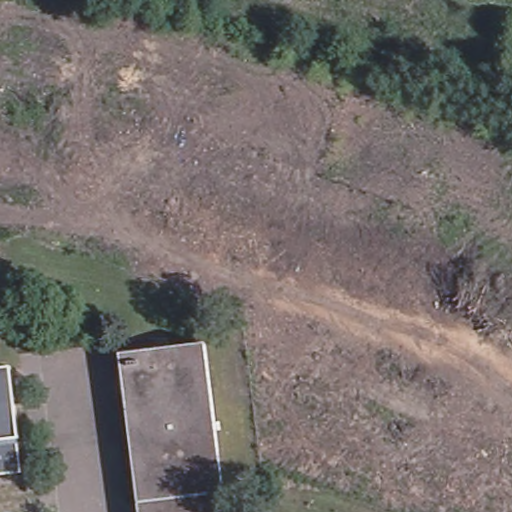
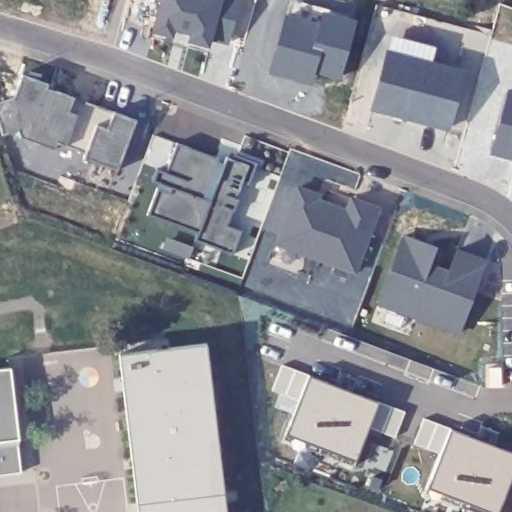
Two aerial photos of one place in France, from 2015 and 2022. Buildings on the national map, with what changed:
new [(219,0),(243,0),(232,43),(211,37),(207,46),(192,41),(195,34),(173,26),(170,35),(154,30),(162,0),(216,0),(219,1),(219,0)]
new [(320,26),(324,15),(355,24),(340,81),(315,74),(314,84),(271,72),(287,18),(320,26)]
new [(395,36),(437,48),(432,70),(465,79),(450,136),(404,123),(405,118),(399,116),(397,121),(374,115),(390,59),(395,36)]
new [(22,76),(49,85),(47,89),(62,94),(50,119),(44,147),(22,139),(24,132),(4,136),(0,124),(0,104),(14,100),(22,76)]
new [(493,158),(512,91),(512,92),(512,163),(493,158)]
new [(50,119),(62,94),(137,121),(119,172),(96,164),(97,159),(58,144),(55,151),(44,147),(50,119)]
new [(217,157),(217,161),(225,163),(227,158),(247,165),(249,160),(255,163),(248,183),(242,181),(235,198),(239,199),(235,209),(231,208),(225,226),(241,232),(233,254),(196,241),(199,234),(149,215),(160,183),(153,181),(157,169),(167,172),(175,144),(217,157)]
new [(320,192),(319,199),(345,207),(349,194),(381,205),(356,274),(275,245),(296,184),(320,192)]
new [(438,245),(432,264),(448,268),(455,248),(487,260),(460,334),(377,305),(402,234),(438,245)]
unchanged [(127,354),(217,346),(231,512),(140,512),(127,354)]
unchanged [(18,439),(15,440),(19,473),(0,475),(0,367),(10,366),(18,439)]
new [(405,413),(395,440),(369,430),(357,461),(287,435),(300,402),(272,391),(282,366),(405,413)]
new [(512,458),(512,482),(502,512),(478,512),(480,505),(447,491),(440,503),(425,495),(445,433),(512,458)]

